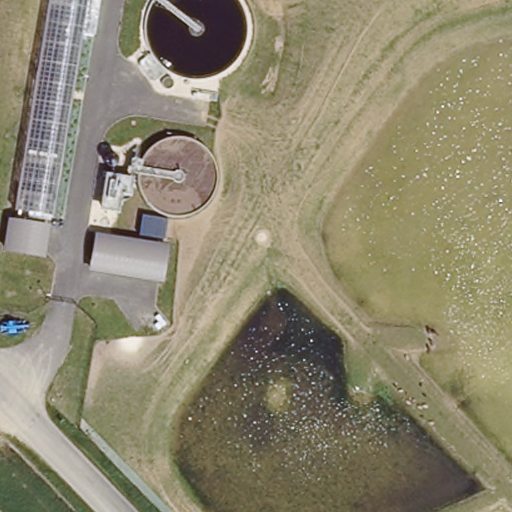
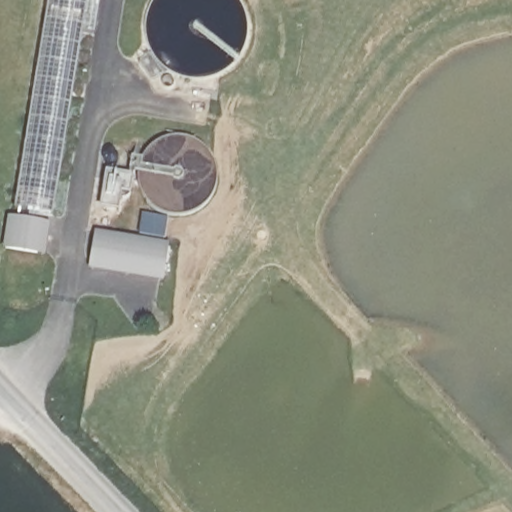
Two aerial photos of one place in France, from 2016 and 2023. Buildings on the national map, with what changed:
unchanged [(46,258),(2,250),(7,217),(14,217),(48,0),(86,0),(46,258)]
unchanged [(168,242),(163,280),(88,268),(95,232),(168,242)]

